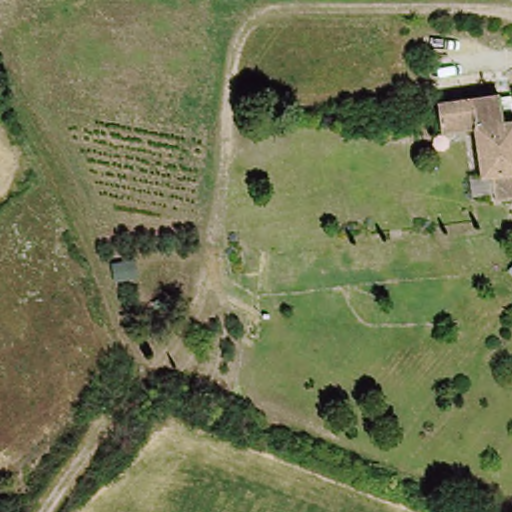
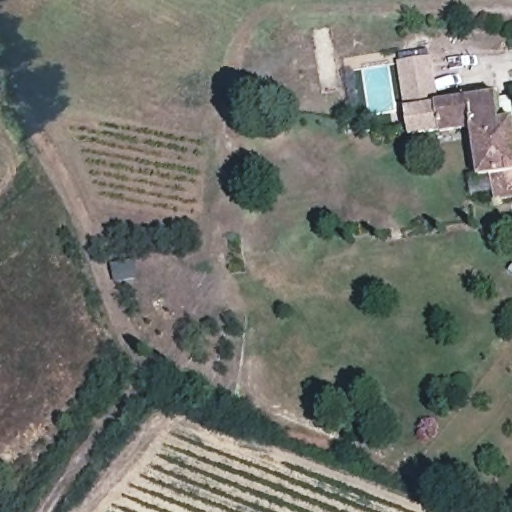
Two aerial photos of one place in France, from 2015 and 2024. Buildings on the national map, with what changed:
new [(439,105),(443,130),(409,136),(404,107),(397,60),(432,54),(439,105)]
unchanged [(499,198),(495,174),(484,176),(476,130),(444,135),(439,105),(503,95),(508,116),(512,116),(512,196),(499,198)]

